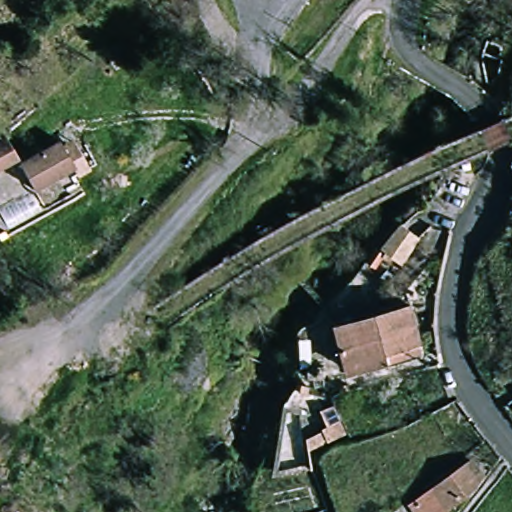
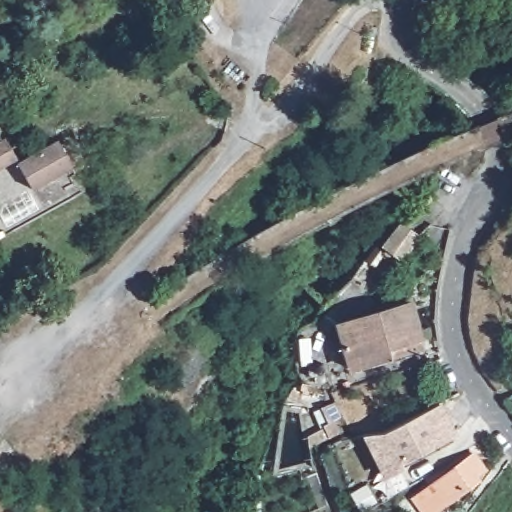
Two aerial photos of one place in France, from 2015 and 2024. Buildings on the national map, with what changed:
unchanged [(67,145),(76,170),(34,186),(24,162),(67,145)]
unchanged [(15,164),(0,170),(0,153),(11,149),(15,164)]
unchanged [(380,249),(401,221),(417,234),(397,262),(380,249)]
unchanged [(354,367),(342,322),(418,301),(430,347),(354,367)]
new [(387,484),(381,472),(363,440),(379,435),(395,431),(439,410),(452,434),(455,440),(402,470),(404,475),(387,484)]
unchanged [(490,472),(437,512),(424,512),(414,497),(476,450),(490,472)]

